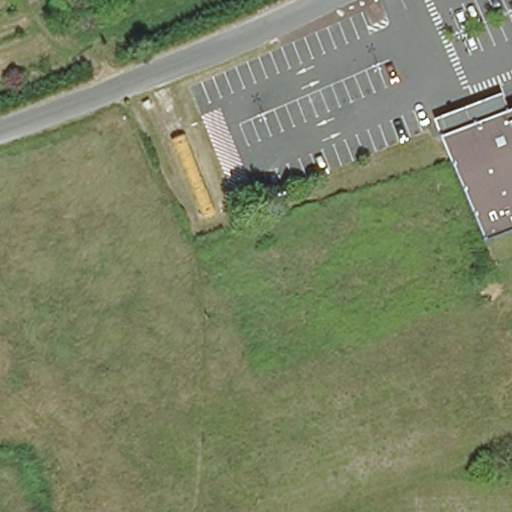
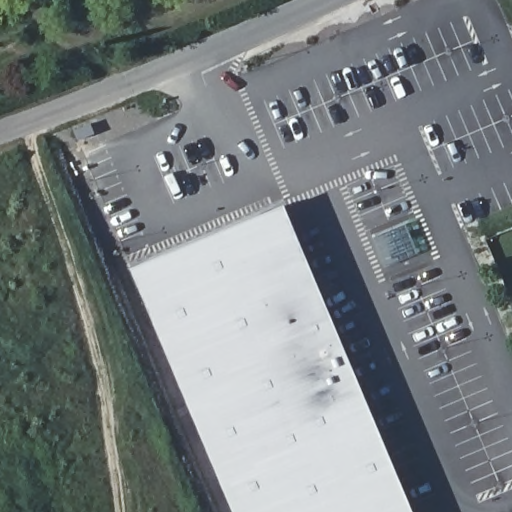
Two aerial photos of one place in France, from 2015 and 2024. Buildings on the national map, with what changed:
demolished [(444,139),(437,125),(506,99),(512,110),(512,231),(486,241),(444,139)]
demolished [(202,220),(168,142),(181,134),(215,210),(202,220)]
new [(284,204),(413,512),(234,512),(131,268),(284,204)]

